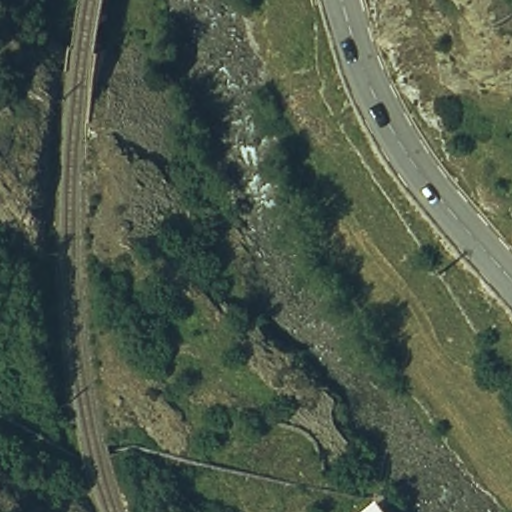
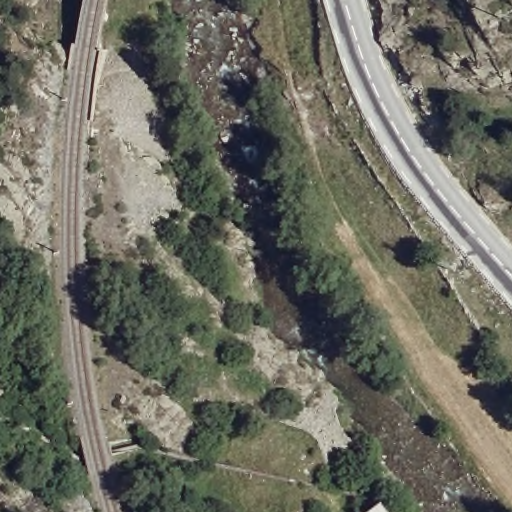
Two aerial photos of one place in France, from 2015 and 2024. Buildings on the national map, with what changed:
unchanged [(377,512),(386,506),(391,512),(377,512)]

